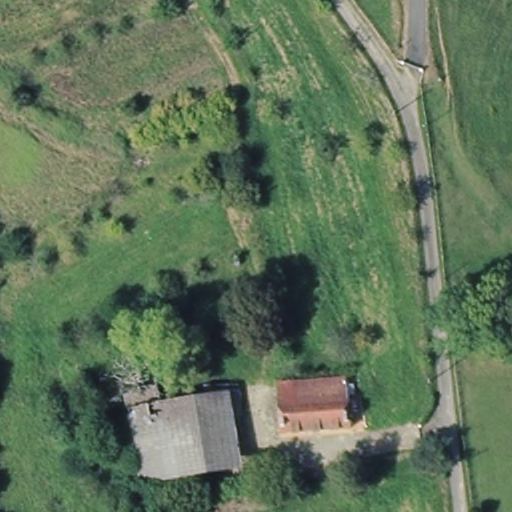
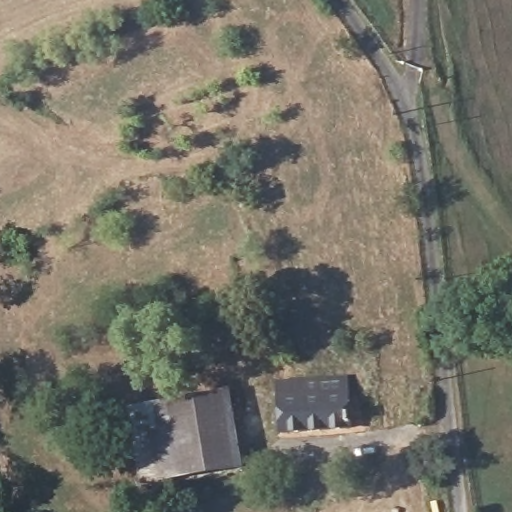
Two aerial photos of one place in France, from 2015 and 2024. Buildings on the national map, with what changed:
unchanged [(278,433),(275,382),(303,380),(342,377),(346,428),(278,433)]
unchanged [(137,482),(127,409),(227,395),(239,466),(137,482)]

